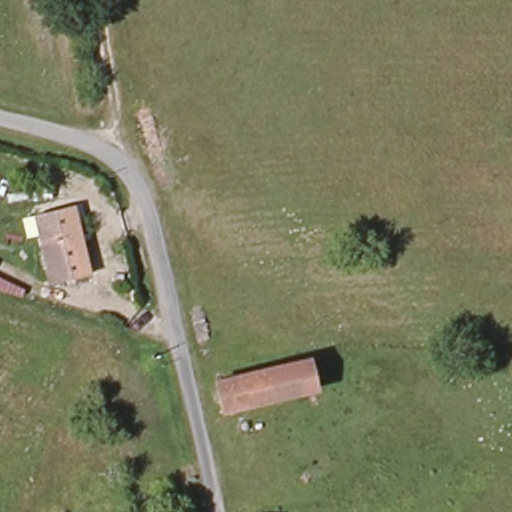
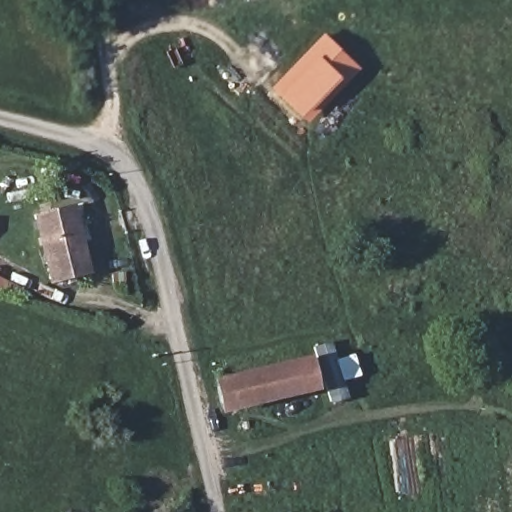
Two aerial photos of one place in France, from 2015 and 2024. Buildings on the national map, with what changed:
new [(310,120),(272,86),(325,31),(340,46),(359,66),(310,120)]
unchanged [(54,289),(37,222),(75,212),(93,280),(54,289)]
new [(19,297),(0,291),(0,279),(22,286),(19,297)]
unchanged [(255,408),(225,415),(219,388),(321,360),(327,390),(255,408)]

